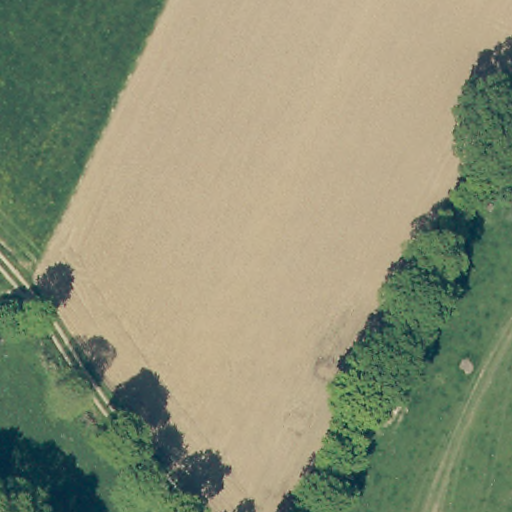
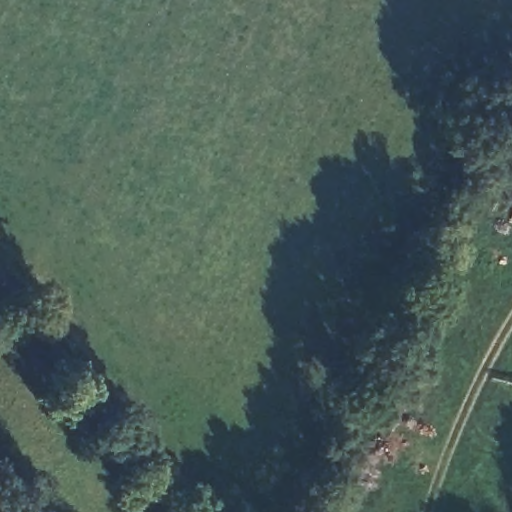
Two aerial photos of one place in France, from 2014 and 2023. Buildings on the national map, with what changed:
[]

